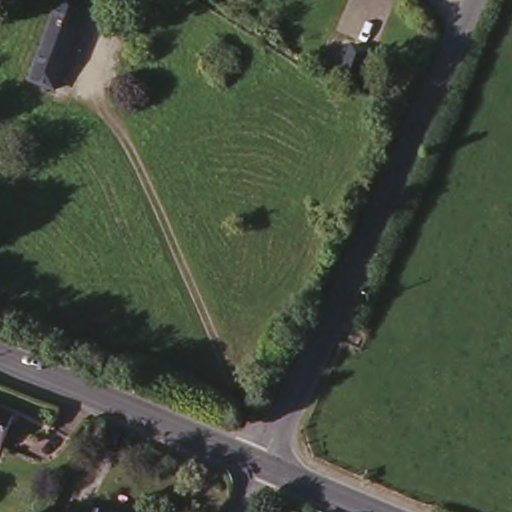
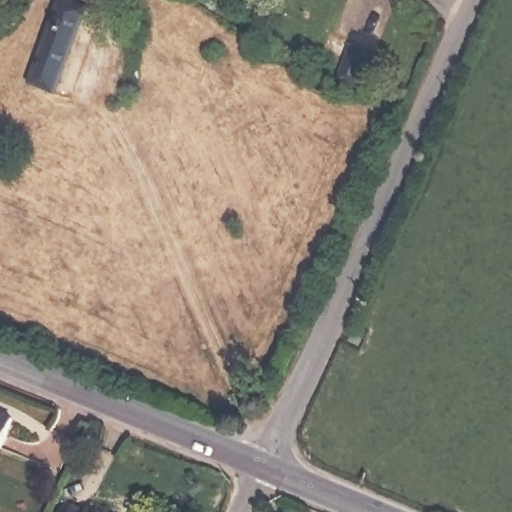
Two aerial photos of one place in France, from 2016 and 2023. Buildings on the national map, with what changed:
unchanged [(101,5),(71,89),(46,80),(76,0),(87,0),(101,5)]
unchanged [(379,52),(366,81),(352,75),(364,45),(379,52)]
unchanged [(12,423),(0,452),(0,418),(12,423)]
unchanged [(96,505),(112,512),(75,512),(80,501),(95,507),(96,505)]

